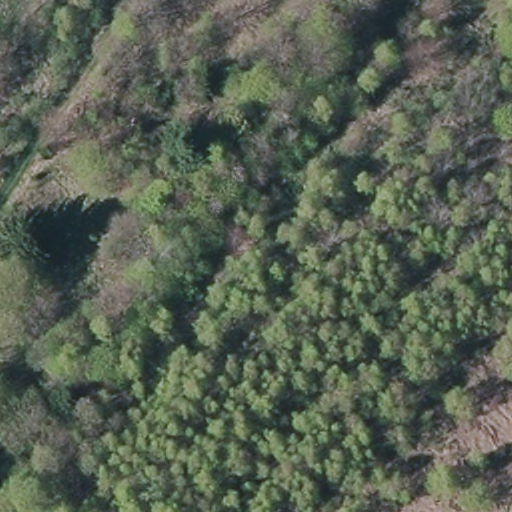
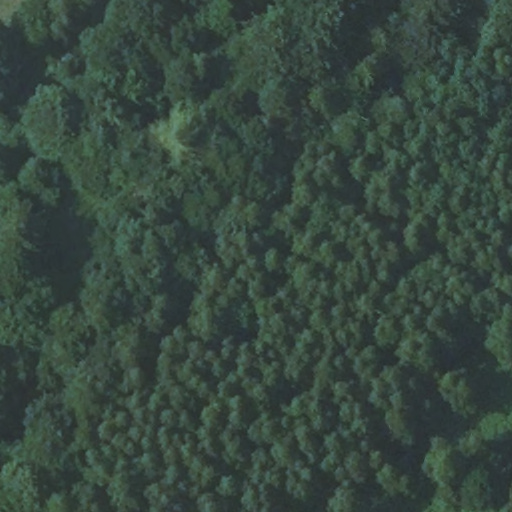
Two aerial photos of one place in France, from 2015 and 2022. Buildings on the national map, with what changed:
[]

